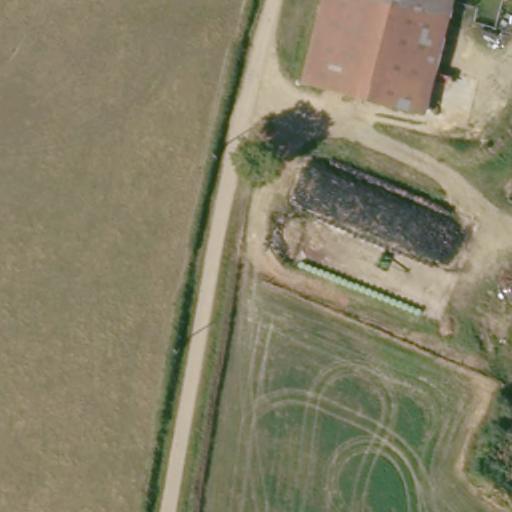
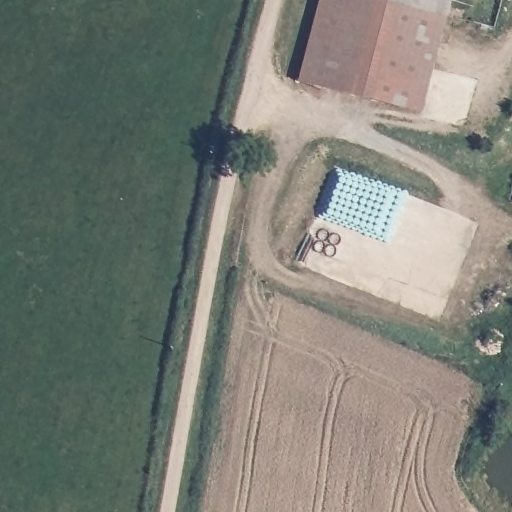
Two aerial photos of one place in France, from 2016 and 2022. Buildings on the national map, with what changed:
unchanged [(321,0),(450,0),(425,109),(303,81),(321,0)]

